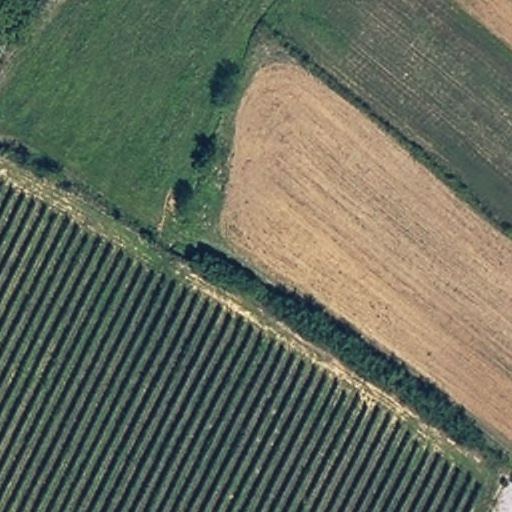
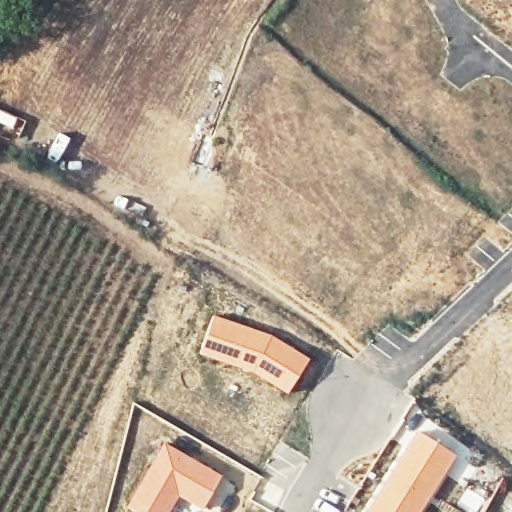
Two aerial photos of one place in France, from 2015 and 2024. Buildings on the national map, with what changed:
new [(212,314),(270,335),(310,358),(287,394),(250,372),(199,353),(212,314)]
new [(417,427),(458,453),(420,512),(363,512),(394,460),(417,427)]
new [(222,475),(200,510),(179,497),(169,512),(136,512),(125,505),(164,440),(222,475)]

